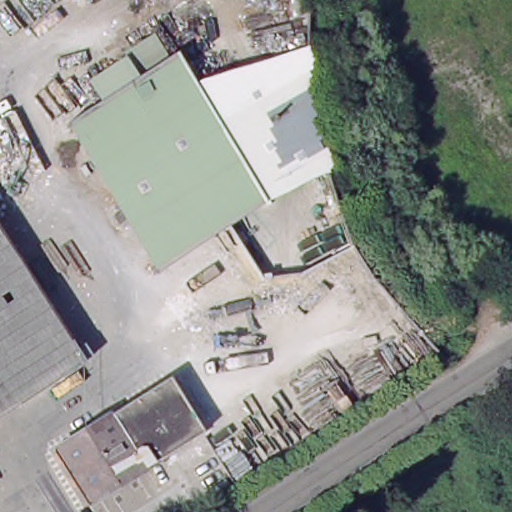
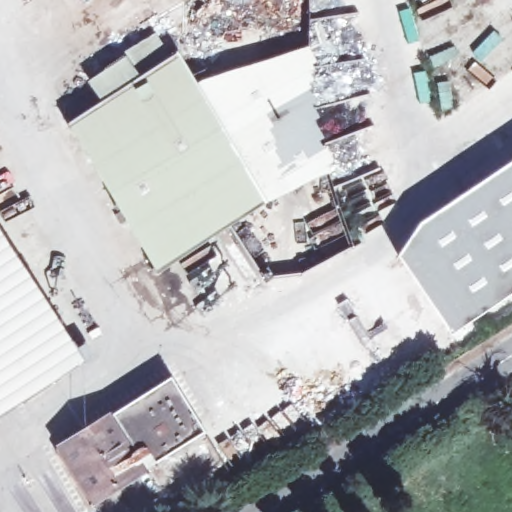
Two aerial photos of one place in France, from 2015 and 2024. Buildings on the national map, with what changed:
unchanged [(275,197),(162,269),(68,122),(145,73),(131,51),(155,36),(169,58),(180,51),(275,197)]
new [(425,216),(512,158),(512,293),(451,335),(395,256),(417,223),(425,216)]
unchanged [(84,363),(0,418),(0,230),(84,363)]
unchanged [(168,378),(202,431),(192,438),(87,502),(55,448),(158,384),(168,378)]

